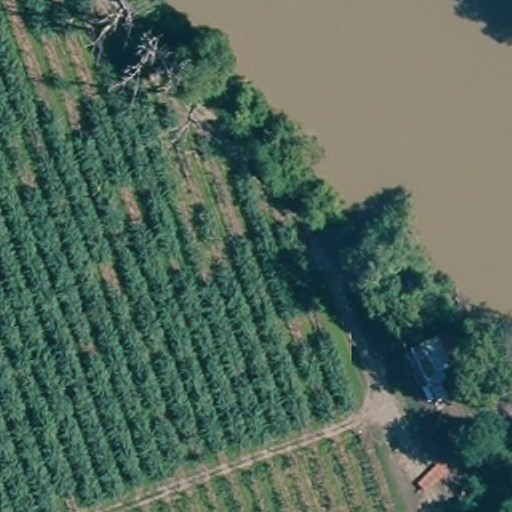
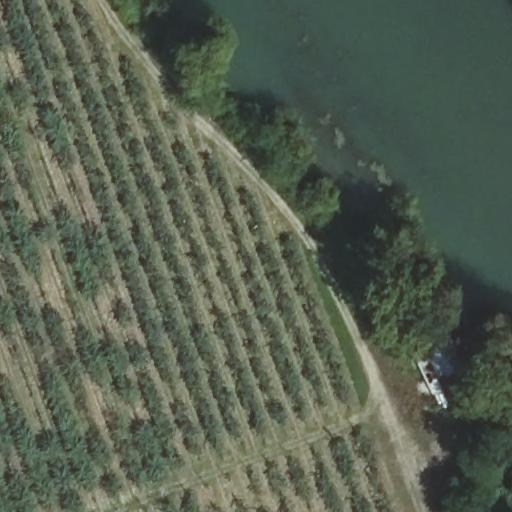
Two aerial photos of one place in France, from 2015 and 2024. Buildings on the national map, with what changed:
unchanged [(446,340),(475,398),(441,413),(414,357),(446,340)]

